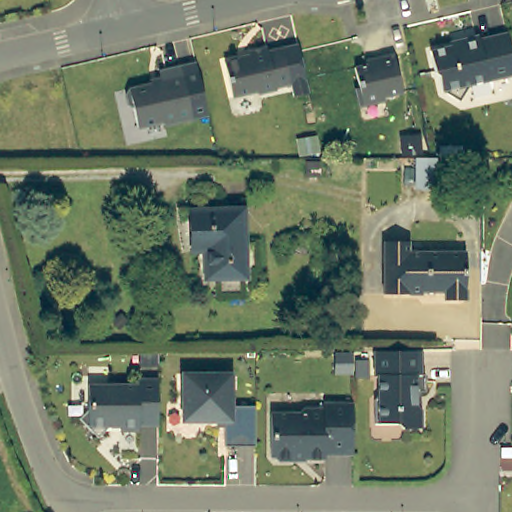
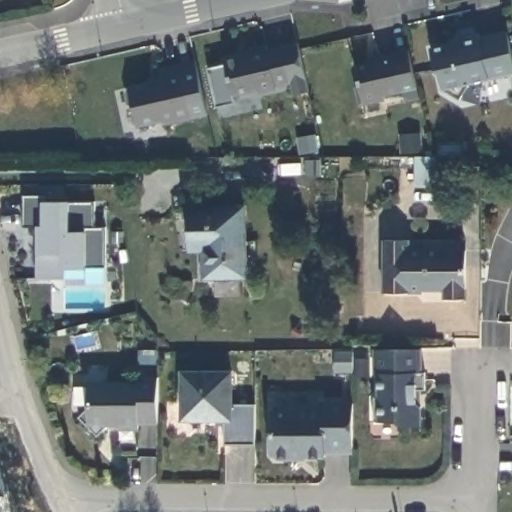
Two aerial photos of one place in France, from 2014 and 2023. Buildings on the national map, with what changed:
unchanged [(454,41),(453,37),(471,33),(472,36),(500,31),(501,35),(510,72),(509,72),(463,82),(452,99),(435,88),(432,73),(428,70),(423,48),(454,41)]
unchanged [(287,79),(272,82),(272,85),(255,89),(254,85),(229,92),(220,57),(245,52),(245,47),(263,42),(264,47),(279,43),(287,79)]
unchanged [(398,88),(380,91),(381,95),(355,101),(351,84),(355,83),(350,63),(362,60),(362,56),(390,49),(398,88)]
unchanged [(124,87),(155,79),(153,70),(174,65),(185,115),(159,121),(152,118),(132,123),(124,87)]
new [(96,229),(107,229),(105,267),(87,268),(69,269),(66,279),(39,279),(40,254),(40,225),(25,226),(25,196),(45,196),(46,201),(69,201),(95,203),(96,229)]
unchanged [(205,251),(194,252),(192,205),(247,205),(249,275),(205,274),(205,251)]
unchanged [(467,249),(467,297),(446,297),(446,288),(425,288),(424,291),(385,290),(386,238),(411,238),(411,248),(467,249)]
unchanged [(422,345),(423,345),(423,369),(427,369),(427,387),(422,387),(422,397),(427,402),(427,427),(405,428),(404,432),(400,436),(376,436),(371,432),(371,393),(375,389),(375,375),(372,375),(371,346),(422,345)]
unchanged [(234,370),(234,402),(257,402),(257,406),(257,443),(226,443),(225,418),(185,418),(185,370),(234,370)]
unchanged [(94,433),(75,414),(84,405),(85,379),(134,380),(134,374),(155,374),(154,421),(135,421),(135,426),(116,426),(116,422),(105,422),(94,433)]
unchanged [(265,451),(265,406),(292,407),(297,402),(318,402),(318,397),(347,397),(347,400),(347,416),(347,448),(319,448),(319,453),(300,453),(300,451),(288,451),(284,455),(271,455),(267,451),(265,451)]
new [(10,495),(0,498),(0,456),(10,495)]

